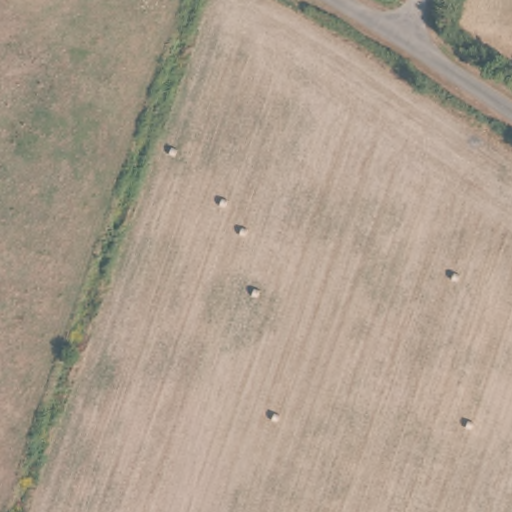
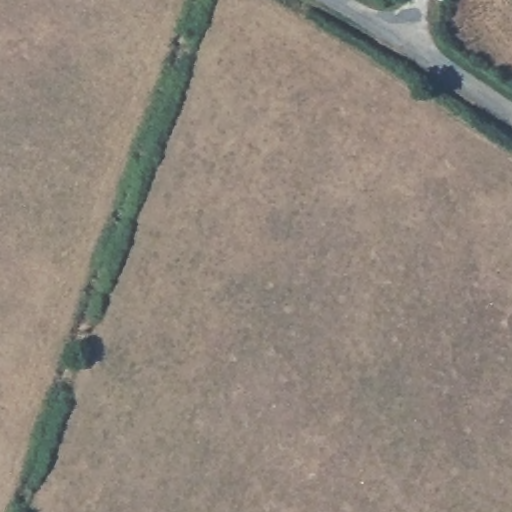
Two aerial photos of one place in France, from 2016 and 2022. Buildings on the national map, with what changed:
[]

